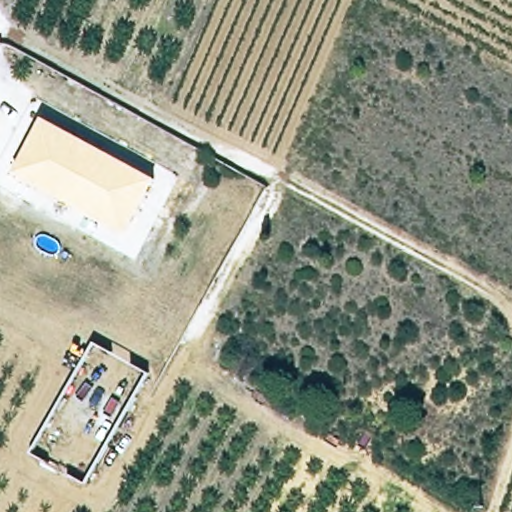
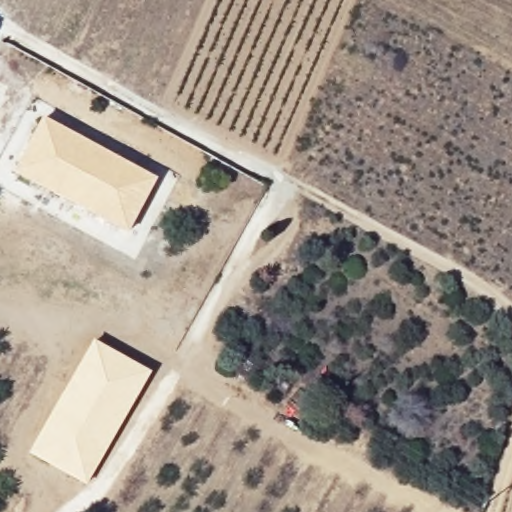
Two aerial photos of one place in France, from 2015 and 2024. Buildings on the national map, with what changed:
unchanged [(154,178),(125,231),(15,172),(44,119),(154,178)]
new [(93,341),(147,374),(81,484),(27,452),(93,341)]

